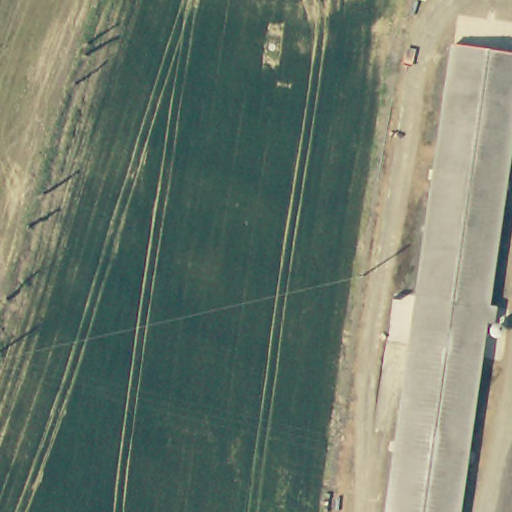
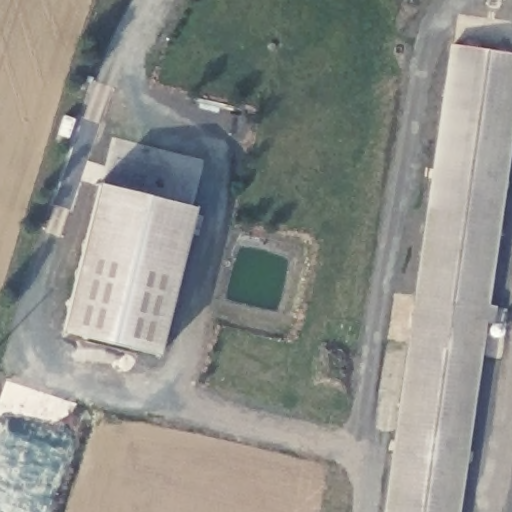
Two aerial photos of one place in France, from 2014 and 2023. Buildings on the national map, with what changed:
unchanged [(486,310),(496,312),(494,326),(484,326),(456,512),(387,512),(456,48),(512,57),(512,138),(486,310)]
new [(195,207),(159,355),(61,332),(99,183),(195,207)]

